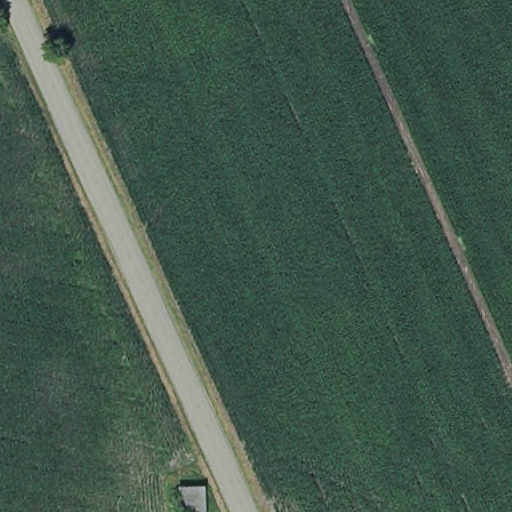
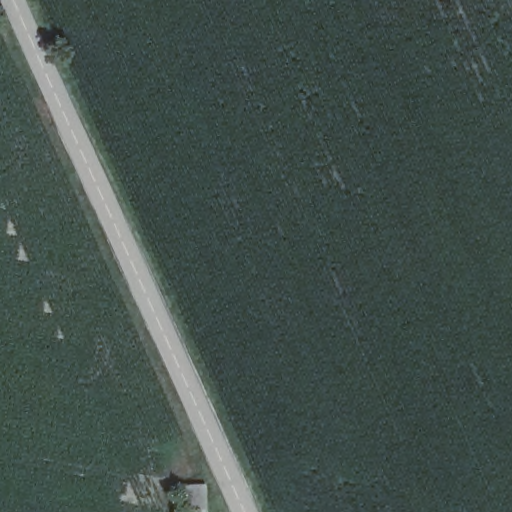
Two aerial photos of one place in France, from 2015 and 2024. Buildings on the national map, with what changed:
unchanged [(212,512),(182,512),(179,486),(209,484),(212,512)]

